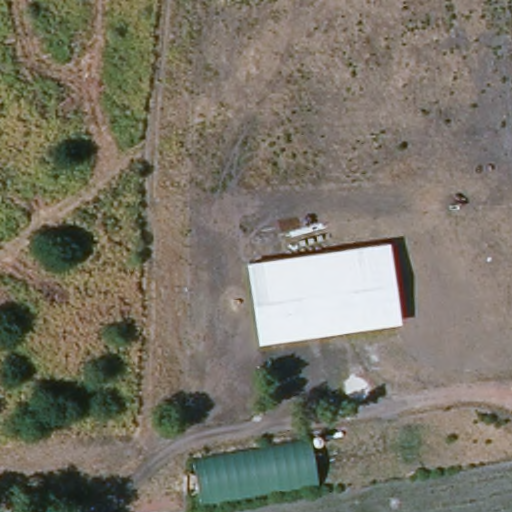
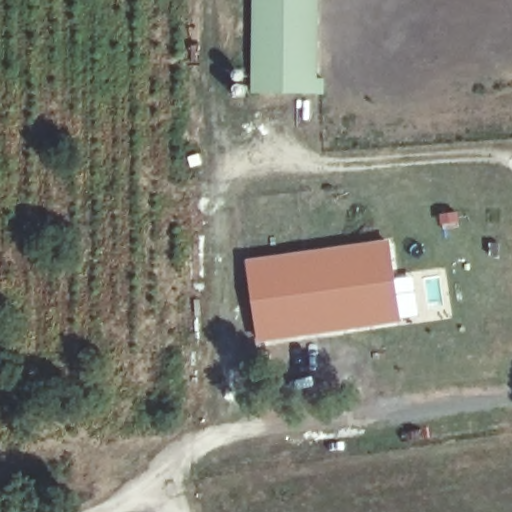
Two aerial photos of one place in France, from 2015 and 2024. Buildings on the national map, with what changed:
new [(318,75),(327,75),(325,91),(254,91),(255,0),(319,0),(318,75)]
unchanged [(247,262),(391,242),(401,326),(258,345),(247,262)]
demolished [(198,464),(314,441),(322,484),(205,508),(198,464)]

